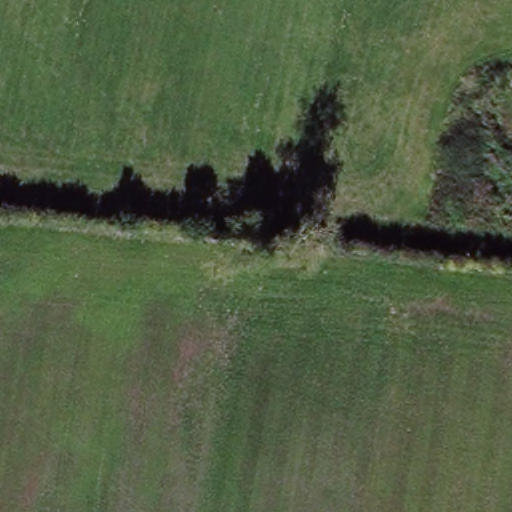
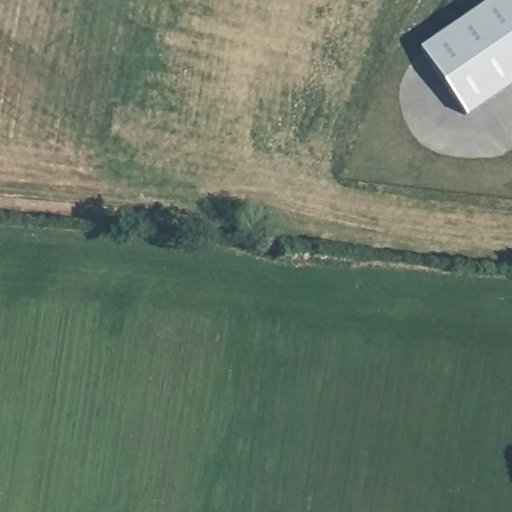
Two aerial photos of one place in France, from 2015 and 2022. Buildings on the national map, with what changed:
new [(512,0),(512,87),(466,119),(420,48),(491,0),(512,0)]

